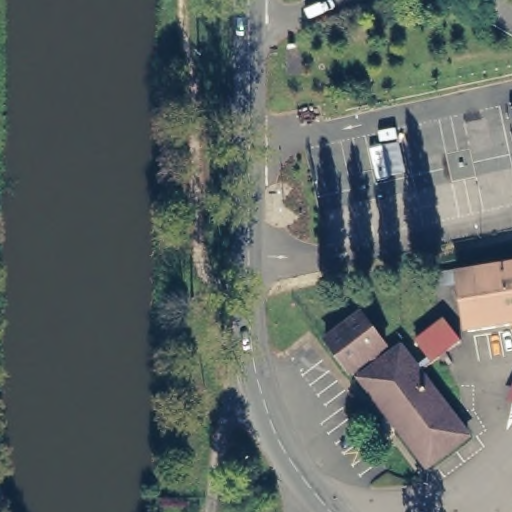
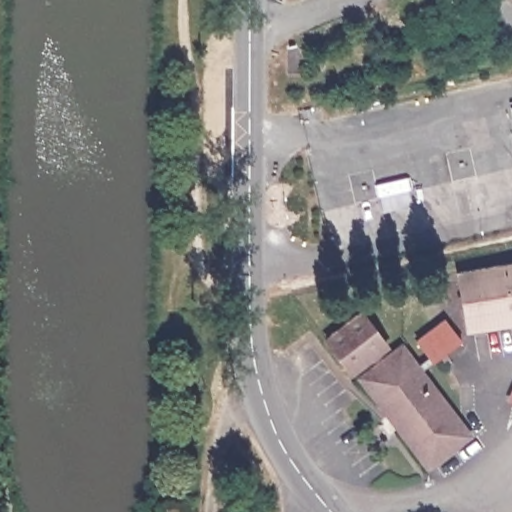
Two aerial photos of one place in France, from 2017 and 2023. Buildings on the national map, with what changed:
unchanged [(303,58),(303,70),(288,70),(288,58),(303,58)]
unchanged [(466,331),(455,269),(512,259),(512,323),(466,331)]
unchanged [(374,365),(367,356),(348,370),(323,337),(363,308),(387,340),(377,348),(384,357),(400,345),(414,364),(428,355),(419,343),(449,321),(464,342),(423,373),(471,436),(429,467),(359,375),(374,365)]

